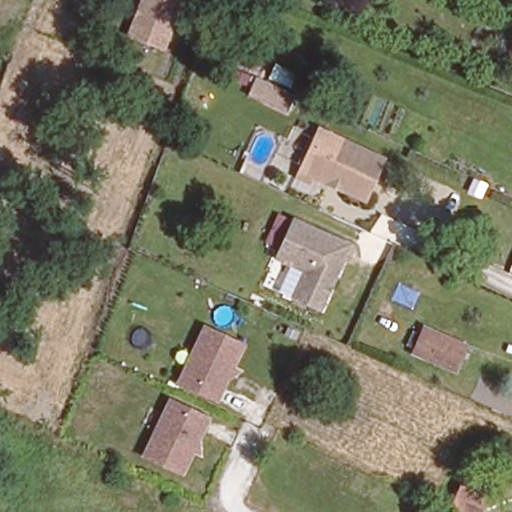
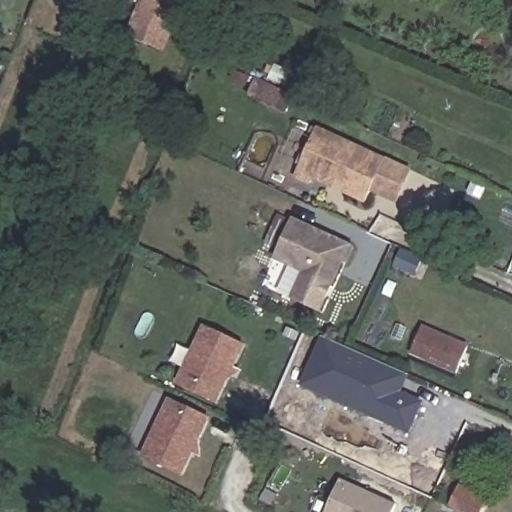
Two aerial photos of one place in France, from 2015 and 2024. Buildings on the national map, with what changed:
unchanged [(139,0),(188,0),(168,54),(124,38),(139,0)]
new [(254,81),(268,87),(292,99),(285,114),(262,102),(247,96),(254,81)]
unchanged [(390,159),(367,205),(296,179),(318,127),(390,159)]
unchanged [(274,262),(294,216),(355,246),(322,314),(289,300),(299,273),(274,262)]
unchanged [(246,344),(217,405),(173,387),(203,325),(246,344)]
unchanged [(465,348),(455,373),(411,355),(422,330),(465,348)]
new [(331,340),(340,345),(401,371),(394,387),(421,400),(405,433),(308,391),(331,340)]
unchanged [(169,399),(213,420),(184,477),(140,457),(169,399)]
new [(397,505),(394,512),(325,512),(338,480),(397,505)]
unchanged [(451,485),(446,495),(436,490),(441,480),(451,485)]
unchanged [(487,512),(455,512),(466,487),(493,498),(487,512)]
unchanged [(438,512),(439,510),(445,512),(438,512)]

